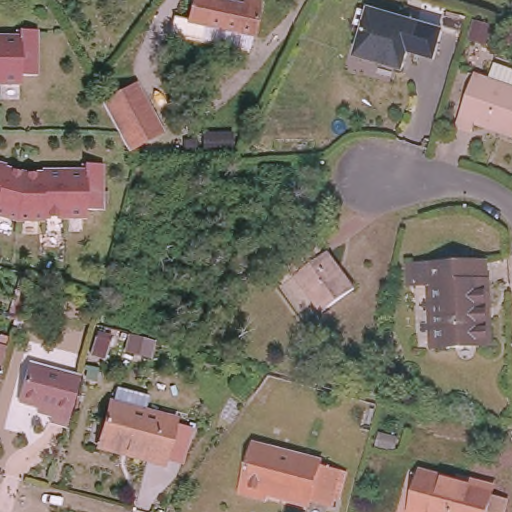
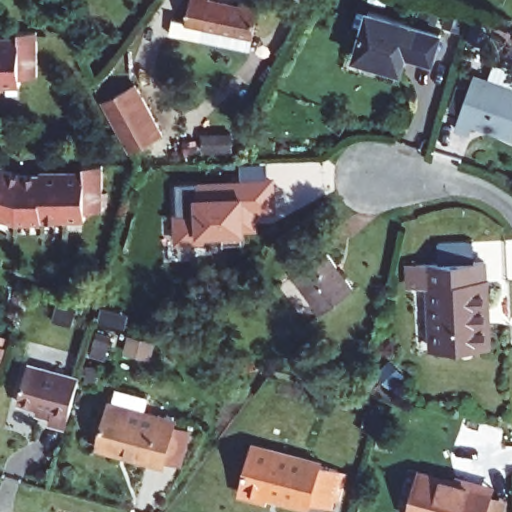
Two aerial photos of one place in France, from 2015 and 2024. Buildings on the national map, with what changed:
unchanged [(173,28),(177,14),(192,17),(195,0),(262,0),(253,44),(173,28)]
unchanged [(445,27),(437,55),(410,47),(405,65),(358,52),(372,6),(445,27)]
unchanged [(446,20),(449,9),(467,13),(463,25),(446,20)]
unchanged [(20,26),(37,26),(37,71),(20,71),(20,79),(0,79),(0,33),(20,33),(20,26)]
unchanged [(512,80),(512,128),(501,124),(502,122),(475,113),(470,124),(457,119),(475,67),(512,80)]
unchanged [(135,79),(162,128),(128,147),(102,98),(135,79)]
new [(203,151),(203,132),(233,131),(233,150),(203,151)]
unchanged [(6,167),(23,171),(42,172),(42,169),(85,169),(85,162),(104,162),(103,207),(87,207),(87,214),(43,214),(43,216),(15,216),(0,212),(0,163),(7,164),(6,167)]
new [(180,182),(243,176),(242,163),(265,162),(265,176),(276,175),(277,212),(245,214),(242,233),(207,235),(207,242),(175,243),(174,212),(182,212),(180,182)]
unchanged [(328,246),(357,283),(325,307),(289,258),(317,238),(326,248),(328,246)]
unchanged [(486,343),(428,345),(426,282),(412,283),(410,263),(440,261),(439,241),(475,240),(475,260),(482,260),(483,278),(485,307),(485,319),(486,343)]
unchanged [(40,403),(19,398),(30,361),(80,375),(67,423),(51,418),(52,413),(38,409),(40,403)]
unchanged [(177,459),(162,455),(160,461),(143,457),(145,452),(95,439),(105,396),(173,413),(171,420),(187,424),(177,459)]
unchanged [(245,486),(257,443),(258,438),(282,444),(326,456),(325,458),(344,463),(348,464),(338,500),(335,499),(316,494),(315,497),(313,503),(272,492),(245,486)]
unchanged [(430,472),(462,480),(462,476),(470,478),(499,486),(497,494),(492,512),(418,512),(430,472)]

